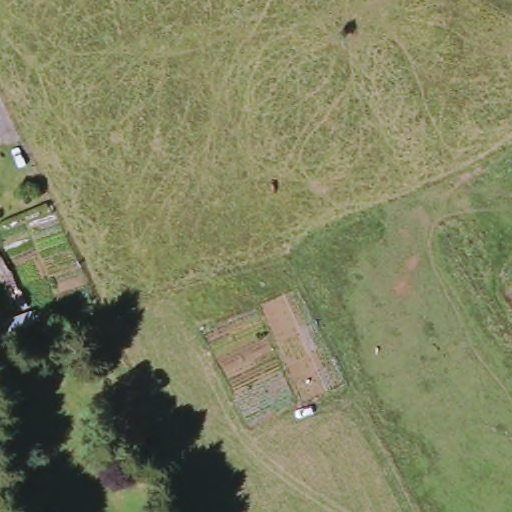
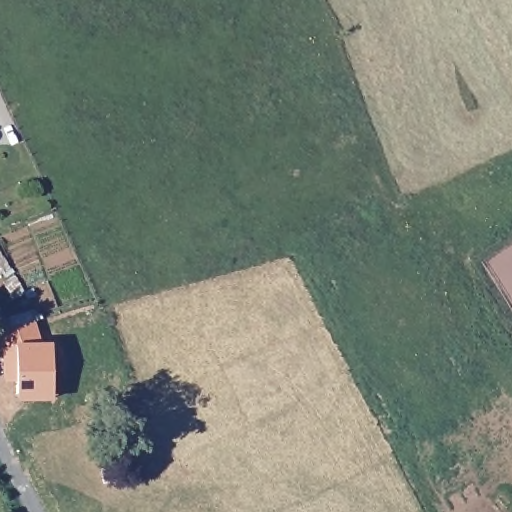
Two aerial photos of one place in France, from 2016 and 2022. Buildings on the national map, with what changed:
new [(36,324),(43,344),(53,344),(55,396),(18,396),(18,374),(6,375),(6,351),(0,335),(36,324)]

